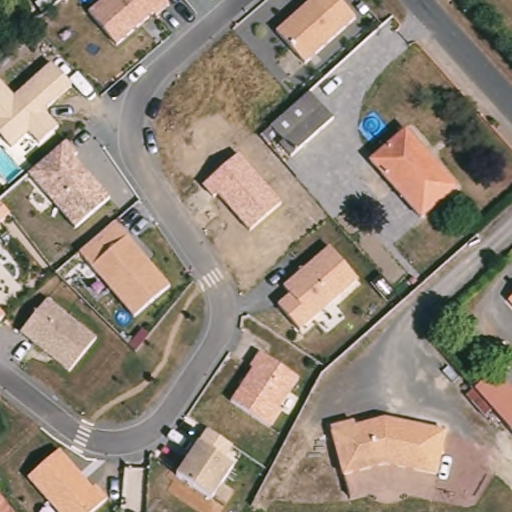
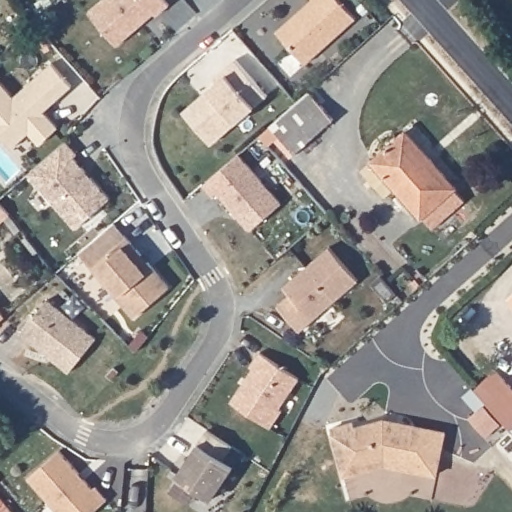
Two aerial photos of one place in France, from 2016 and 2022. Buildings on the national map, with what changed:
unchanged [(165,0),(170,5),(156,17),(152,13),(116,46),(88,11),(101,0),(165,0)]
unchanged [(339,0),(355,18),(303,64),(277,31),(312,0),(339,0)]
new [(265,96),(255,106),(237,122),(212,144),(183,110),(207,90),(224,74),(236,60),(265,96)]
unchanged [(45,110),(60,127),(39,145),(27,133),(11,150),(0,137),(0,80),(14,96),(51,64),(71,87),(45,110)]
unchanged [(332,120),(294,154),(285,144),(288,140),(271,121),(305,89),(332,120)]
unchanged [(410,127),(460,182),(423,219),(368,161),(410,127)]
unchanged [(76,154),(74,156),(109,200),(75,229),(27,175),(66,141),(76,154)]
unchanged [(281,204),(250,231),(217,192),(212,197),(202,185),(239,154),(281,204)]
unchanged [(0,223),(0,205),(8,216),(0,223)]
unchanged [(115,221),(167,286),(132,317),(79,252),(115,221)]
unchanged [(328,247),(357,281),(299,330),(277,303),(288,293),(282,286),(328,247)]
unchanged [(96,337),(67,372),(18,334),(45,298),(96,337)]
unchanged [(512,303),(512,306),(511,305),(512,303)]
unchanged [(0,320),(0,313),(4,317),(0,320)]
unchanged [(253,369),(249,366),(257,352),(297,380),(279,407),(282,411),(271,427),(232,401),(253,369)]
unchanged [(486,372),(512,393),(512,428),(468,393),(486,372)]
unchanged [(347,430),(376,420),(407,423),(437,427),(437,429),(435,443),(432,471),(382,465),(380,465),(356,473),(340,478),(327,443),(323,432),(346,425),(347,430)]
unchanged [(206,427),(232,446),(224,459),(235,467),(212,500),(177,475),(206,427)]
unchanged [(91,488),(96,485),(106,497),(88,512),(57,512),(26,477),(60,451),(91,488)]
unchanged [(0,503),(0,499),(2,502),(0,503)]

